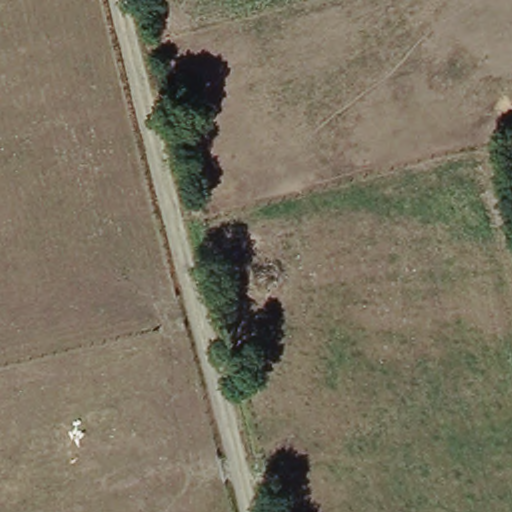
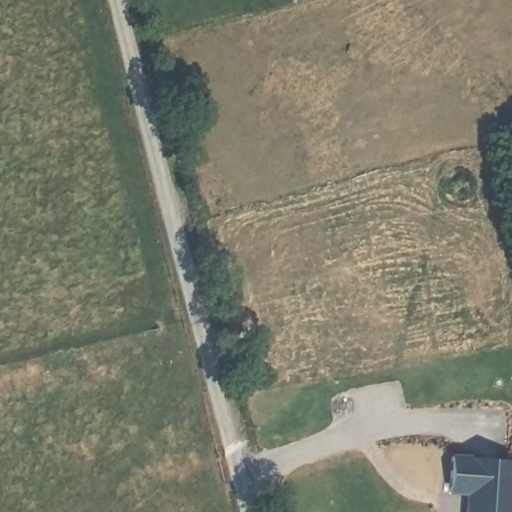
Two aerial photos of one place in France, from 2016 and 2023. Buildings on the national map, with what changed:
new [(470,498),(450,496),(452,461),(512,464),(512,512),(469,512),(469,502),(470,498)]

